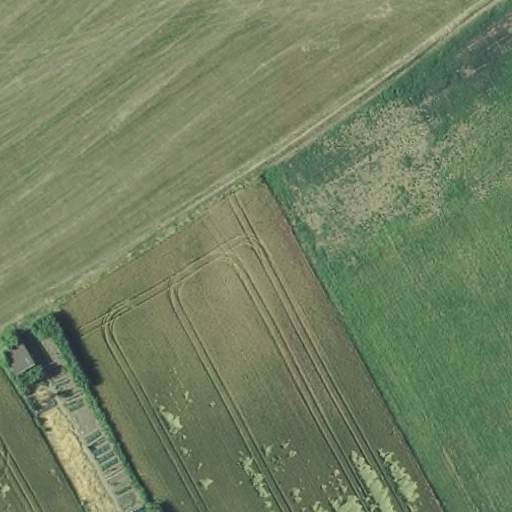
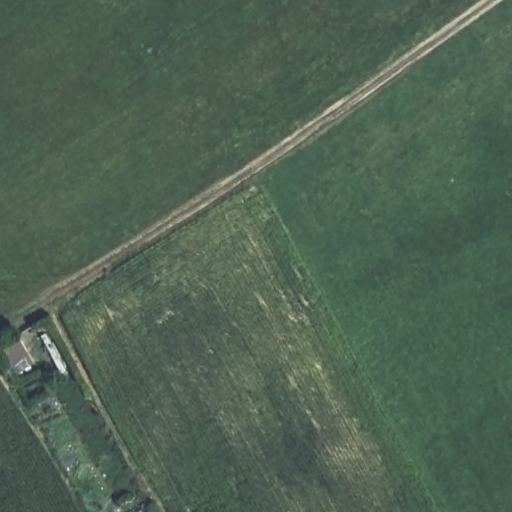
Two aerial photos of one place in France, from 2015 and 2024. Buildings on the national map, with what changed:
[]

